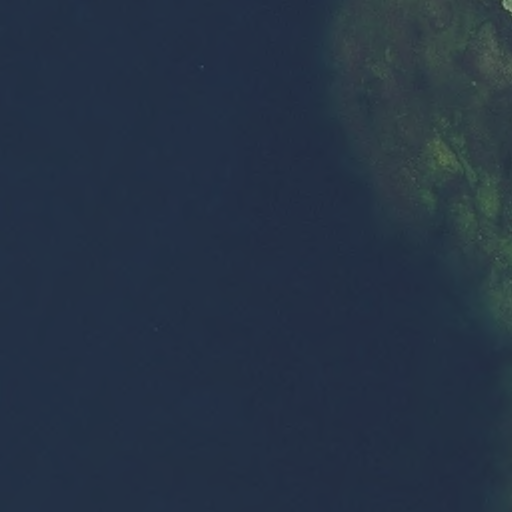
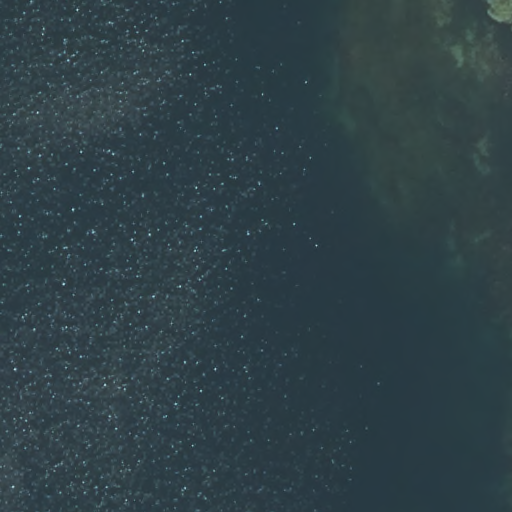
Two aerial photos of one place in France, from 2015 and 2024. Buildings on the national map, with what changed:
[]

